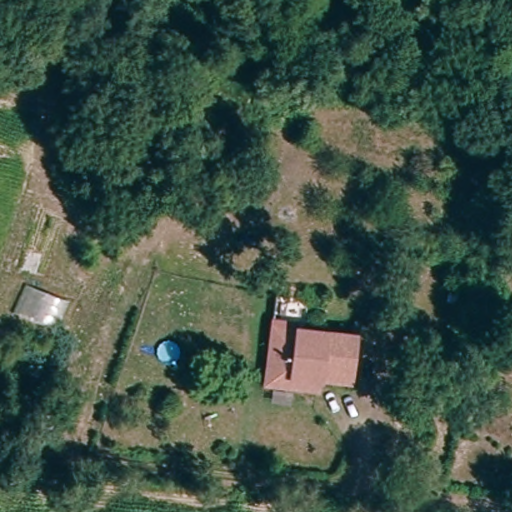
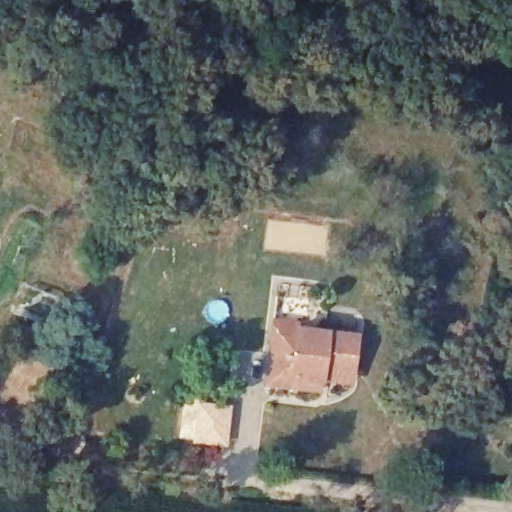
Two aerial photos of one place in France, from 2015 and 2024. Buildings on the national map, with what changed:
unchanged [(317,379),(316,379),(315,392),(265,385),(270,351),(275,313),(305,316),(303,326),(362,335),(356,371),(355,385),(317,379)]
new [(191,443),(196,402),(232,406),(227,448),(191,443)]

